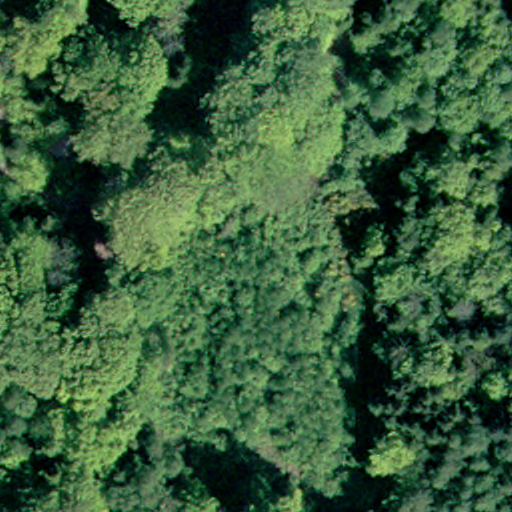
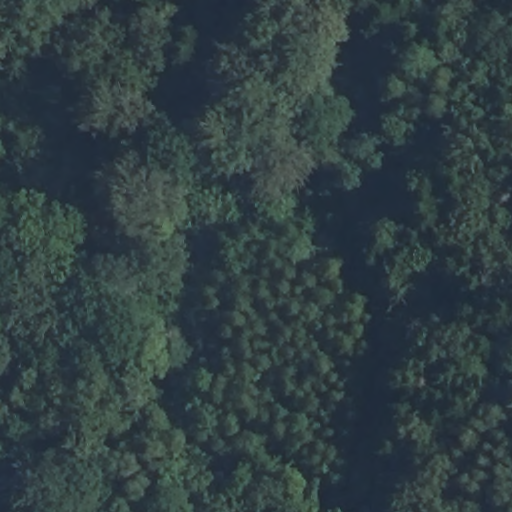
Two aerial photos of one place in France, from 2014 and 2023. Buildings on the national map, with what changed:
[]

